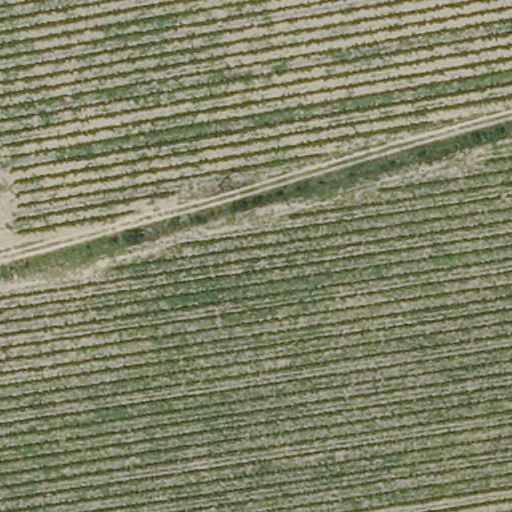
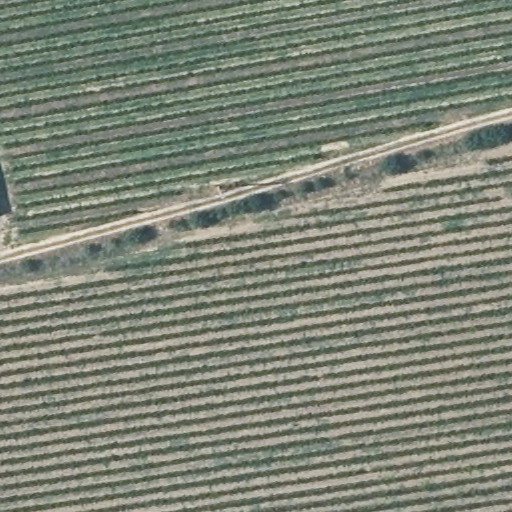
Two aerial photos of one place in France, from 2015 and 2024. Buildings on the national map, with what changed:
[]

